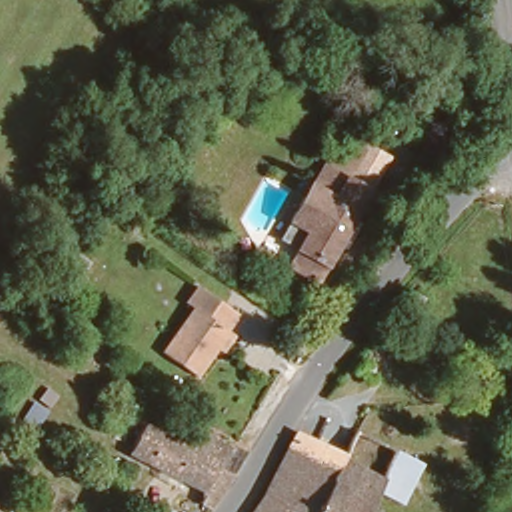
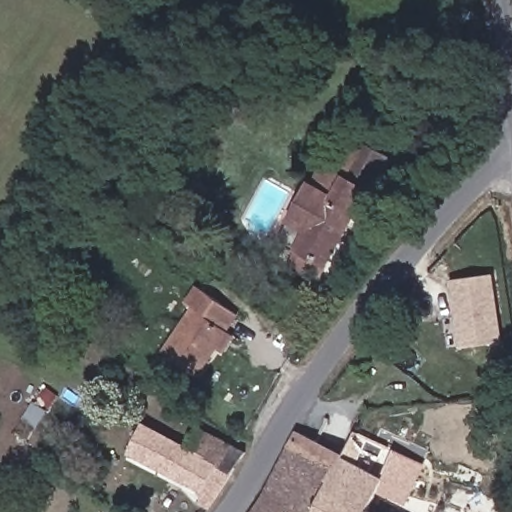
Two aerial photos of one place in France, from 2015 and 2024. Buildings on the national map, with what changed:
unchanged [(292,227),(304,203),(310,191),(311,190),(314,191),(324,170),(329,172),(343,144),(361,152),(363,148),(386,160),(369,194),(323,285),(307,274),(294,266),(301,250),(286,242),(292,227)]
new [(450,281),(495,274),(504,342),(460,349),(450,281)]
unchanged [(219,356),(211,349),(190,376),(161,352),(196,311),(185,302),(199,286),(237,318),(224,333),(232,340),(219,356)]
unchanged [(278,465),(296,427),(314,437),(326,415),(355,428),(348,442),(344,450),(326,486),(343,494),(368,507),(365,512),(299,512),(289,507),(284,512),(250,512),(264,491),(278,465)]
unchanged [(209,509),(200,503),(204,492),(129,453),(144,425),(185,447),(231,475),(209,509)]
unchanged [(185,447),(197,427),(245,454),(231,475),(185,447)]
unchanged [(343,494),(326,486),(344,450),(385,471),(396,446),(424,460),(404,501),(377,488),(368,507),(343,494)]
unchanged [(365,512),(368,507),(379,512),(365,512)]
unchanged [(510,512),(512,508),(512,512),(510,512)]

